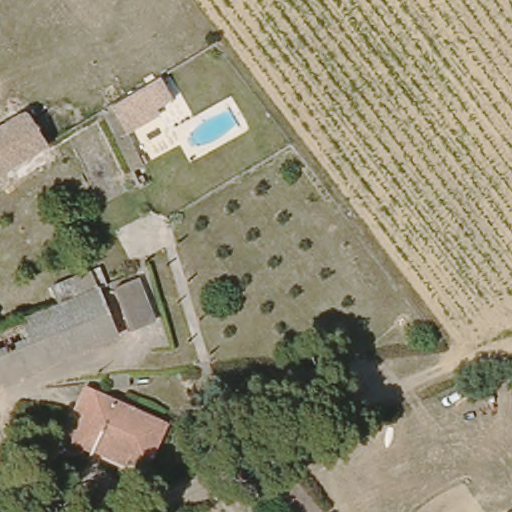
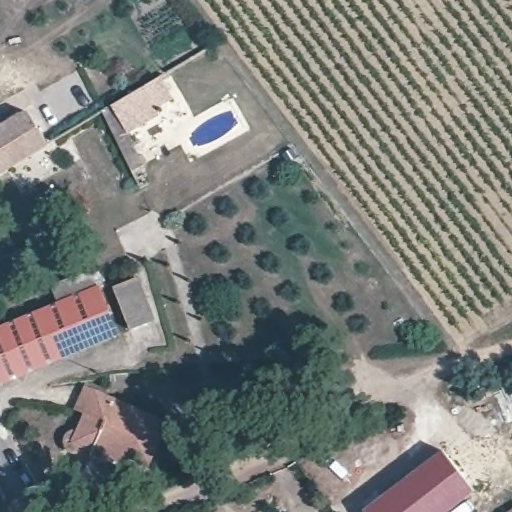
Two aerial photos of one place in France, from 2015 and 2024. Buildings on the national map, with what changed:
unchanged [(169,99),(160,104),(165,115),(127,135),(110,106),(160,79),(169,99)]
unchanged [(52,147),(0,176),(0,130),(33,112),(52,147)]
unchanged [(117,268),(124,284),(116,288),(136,335),(15,382),(0,353),(0,333),(74,303),(68,288),(117,268)]
unchanged [(84,451),(76,454),(68,452),(63,445),(64,438),(70,433),(82,431),(89,415),(83,413),(93,392),(169,425),(149,463),(134,456),(128,470),(84,451)]
new [(475,491),(447,512),(364,512),(363,510),(441,448),(475,491)]
new [(507,512),(512,509),(512,512),(507,512)]

